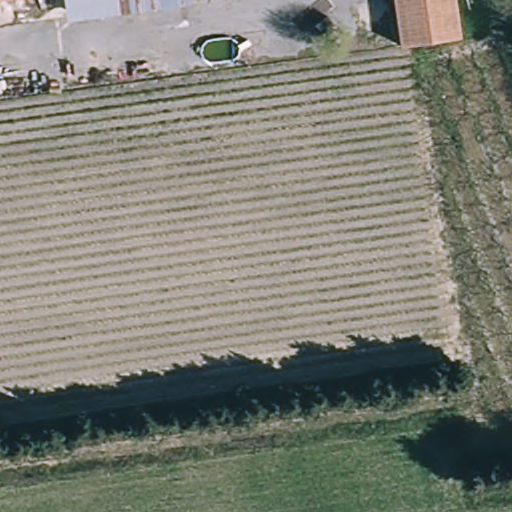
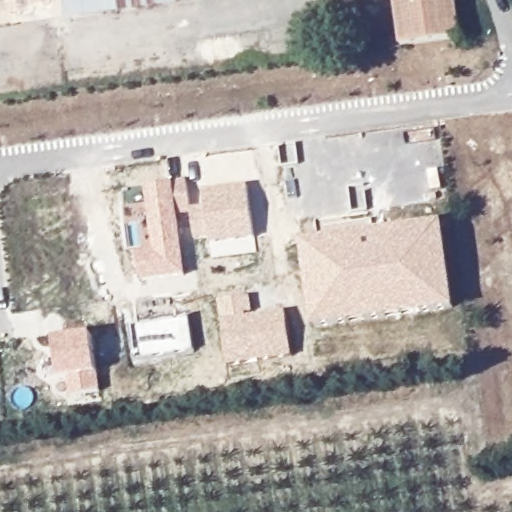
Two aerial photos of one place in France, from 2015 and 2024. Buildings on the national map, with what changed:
unchanged [(67,21),(64,0),(196,0),(197,2),(67,21)]
unchanged [(415,44),(401,46),(394,0),(455,0),(461,37),(415,44)]
unchanged [(325,37),(315,25),(328,16),(337,27),(325,37)]
new [(249,185),(256,239),(211,244),(211,240),(196,242),(193,217),(180,218),(187,276),(142,282),(139,252),(155,251),(146,187),(174,182),(186,180),(191,209),(206,206),(204,191),(249,185)]
new [(455,309),(314,328),(301,242),(444,223),(455,309)]
new [(254,317),(286,311),(293,356),(229,366),(222,322),(218,302),(251,296),(253,312),(254,317)]
new [(138,362),(132,326),(190,317),(195,351),(138,362)]
new [(101,392),(71,397),(71,382),(62,382),(54,342),(93,336),(99,377),(101,392)]

